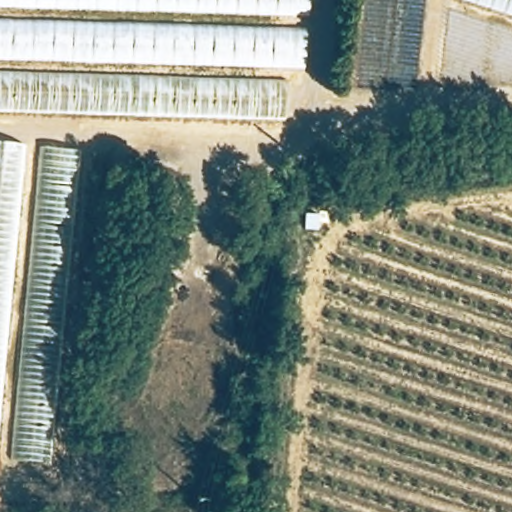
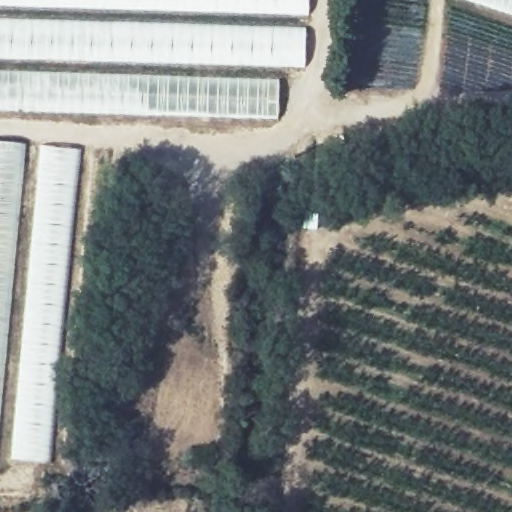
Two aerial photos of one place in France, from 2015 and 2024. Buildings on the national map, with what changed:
unchanged [(282,117),(87,118),(50,459),(0,463),(0,0),(311,0),(302,69),(282,69),(282,117)]
unchanged [(512,0),(512,13),(477,0),(512,0)]

